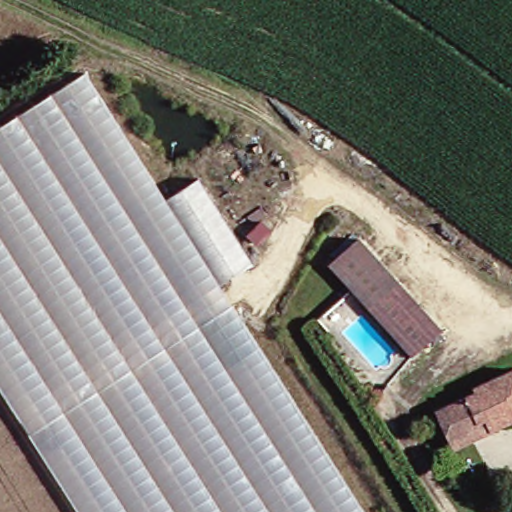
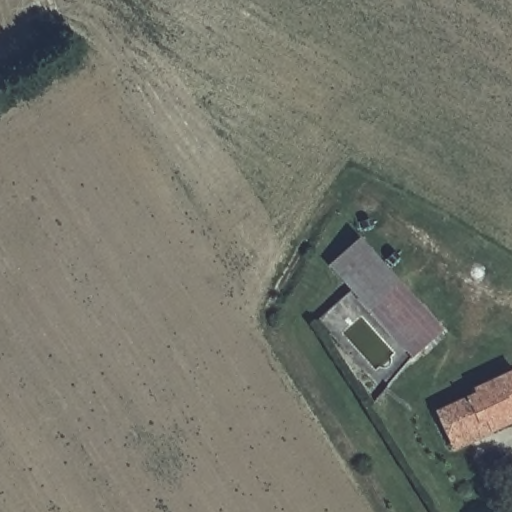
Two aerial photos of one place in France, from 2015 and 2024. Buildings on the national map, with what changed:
demolished [(196,184),(247,268),(218,286),(361,512),(75,512),(0,395),(0,125),(78,74),(162,202),(196,184)]
unchanged [(411,357),(358,297),(331,267),(360,241),(374,256),(435,326),(440,331),(429,341),(411,357)]
unchanged [(435,415),(475,396),(472,391),(511,372),(512,372),(512,424),(492,434),(455,452),(451,445),(435,415)]

